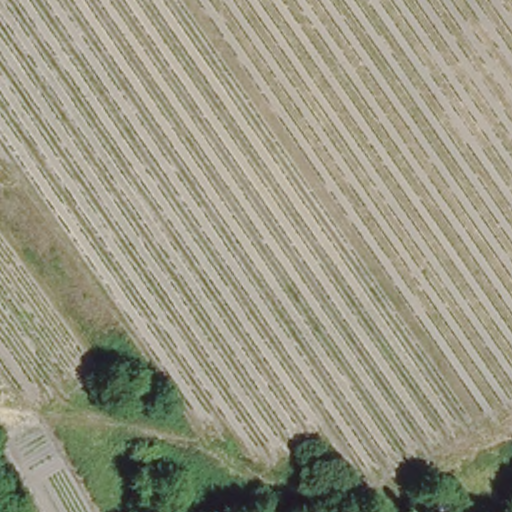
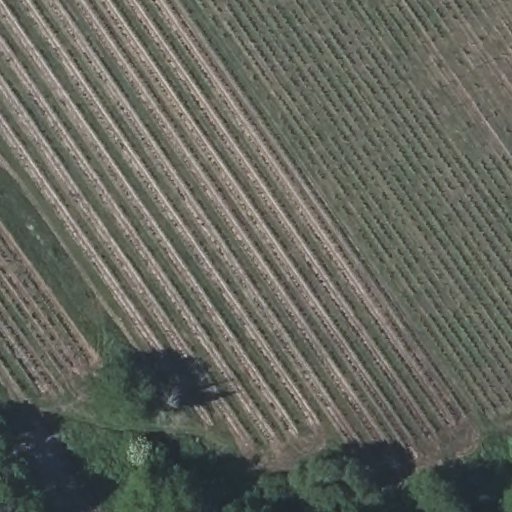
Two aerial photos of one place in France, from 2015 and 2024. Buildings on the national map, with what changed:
[]

